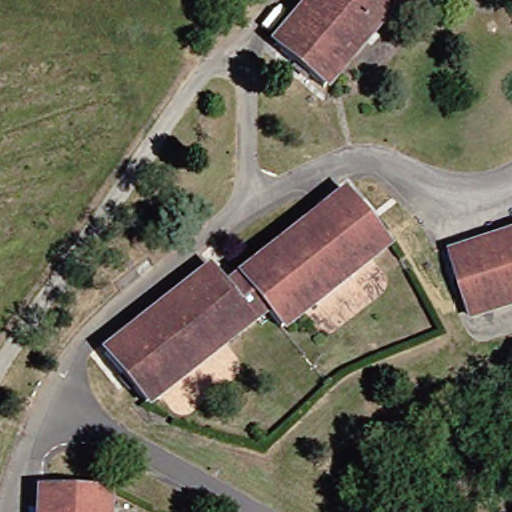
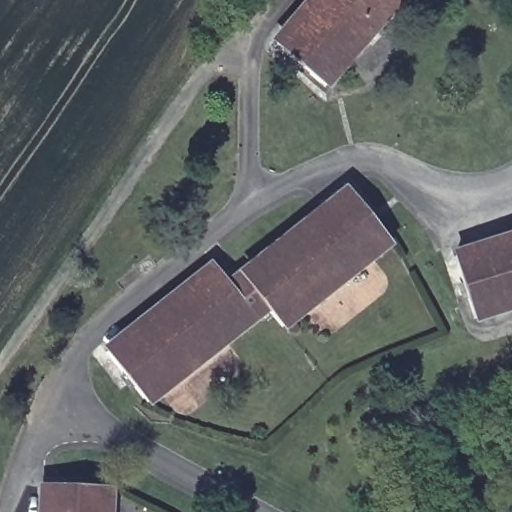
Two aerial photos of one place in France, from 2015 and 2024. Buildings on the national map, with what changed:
unchanged [(307,0),(393,0),(318,87),(274,50),(268,46),(279,34),(307,0)]
unchanged [(113,346),(209,270),(224,290),(332,205),(344,195),(349,201),(386,245),(276,331),(259,313),(140,406),(104,361),(100,356),(113,346)]
unchanged [(459,251),(512,235),(512,302),(464,317),(446,263),(444,256),(459,251)]
unchanged [(43,488),(109,490),(107,512),(42,512),(43,488)]

